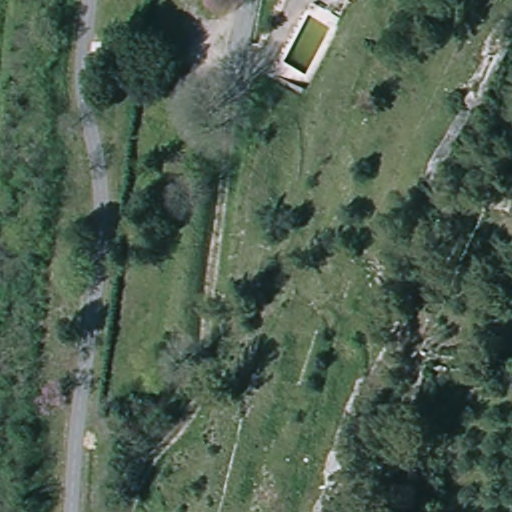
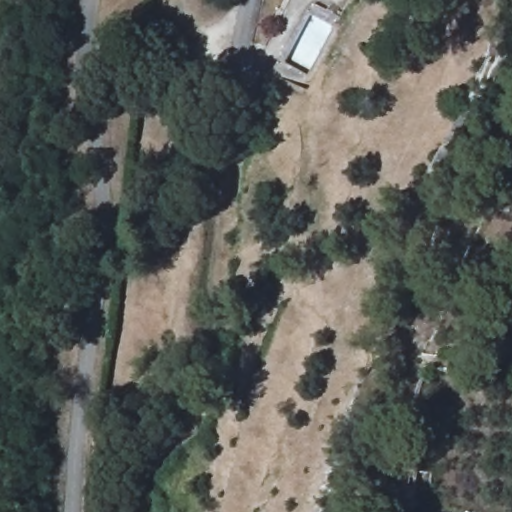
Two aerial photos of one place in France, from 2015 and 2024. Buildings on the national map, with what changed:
unchanged [(393,505),(393,481),(405,481),(405,466),(417,466),(416,505),(393,505)]

